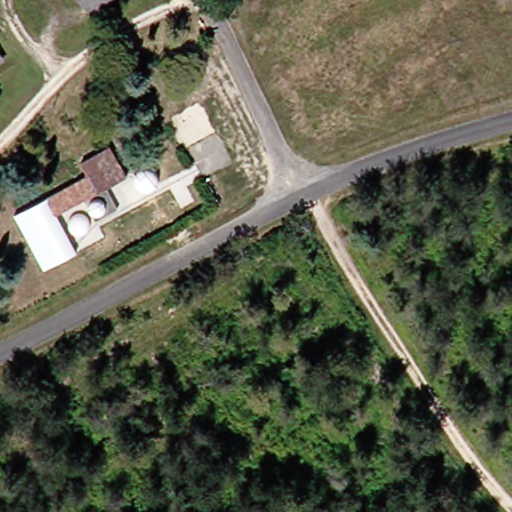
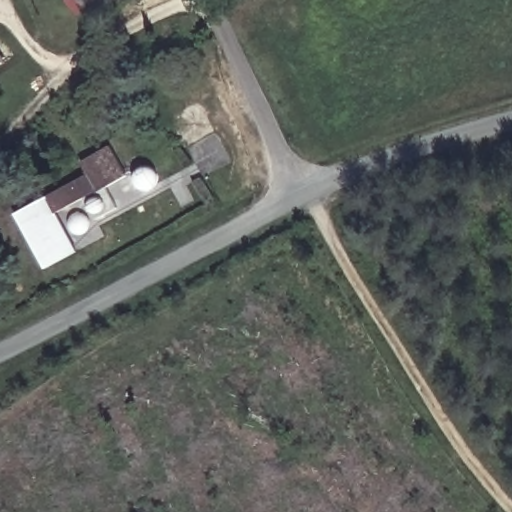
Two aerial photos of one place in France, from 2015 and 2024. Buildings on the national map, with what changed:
unchanged [(83,0),(112,0),(95,14),(83,0)]
unchanged [(8,57),(0,63),(0,46),(8,57)]
unchanged [(62,214),(84,251),(52,270),(20,215),(92,175),(85,162),(114,146),(130,175),(110,187),(120,206),(100,218),(89,198),(62,214)]
unchanged [(163,178),(162,180),(162,182),(160,184),(159,185),(157,187),(155,188),(154,189),(152,190),(150,190),(147,190),(145,189),(143,189),(142,187),(140,186),(139,184),(137,182),(137,180),(136,179),(135,176),(135,174),(136,172),(137,170),(138,168),(140,166),(141,165),(143,164),(145,163),(147,162),(149,162),(151,162),(154,163),(155,164),(157,165),(159,166),(160,168),(162,170),(162,172),(162,174),(163,176),(163,178)]
unchanged [(74,217),(75,216),(76,215),(77,214),(79,213),(80,212),(82,212),(84,212),(86,212),(87,213),(89,214),(90,215),(92,216),(93,217),(94,219),(94,220),(95,222),(95,224),(94,226),(94,227),(93,229),(92,230),(90,232),(90,233),(87,234),(86,234),(85,235),(82,235),(81,234),(79,234),(77,233),(76,232),(75,230),(74,230),(73,227),(72,226),(72,225),(72,222),(72,221),(73,219),(74,217)]

